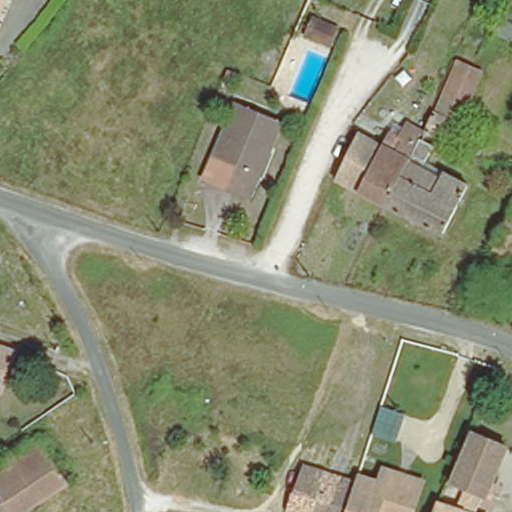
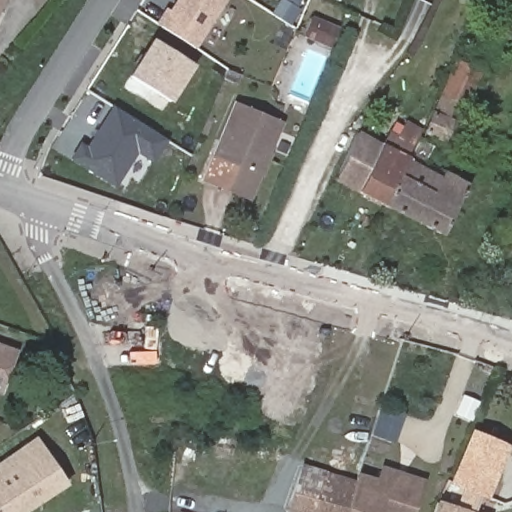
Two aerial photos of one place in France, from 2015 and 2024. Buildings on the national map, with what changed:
unchanged [(0,4),(0,0),(2,0),(0,4)]
new [(172,12),(180,0),(227,0),(197,49),(159,25),(169,10),(172,12)]
demolished [(509,0),(512,0),(512,41),(494,34),(509,0)]
unchanged [(309,39),(317,18),(342,27),(334,48),(309,39)]
new [(160,40),(200,65),(177,101),(137,77),(160,40)]
unchanged [(455,126),(446,146),(424,137),(456,67),(470,73),(482,78),(468,108),(457,103),(448,123),(455,126)]
unchanged [(226,184),(207,176),(216,154),(240,99),(278,115),(287,119),(274,149),(264,173),(254,196),(226,184)]
new [(83,145),(89,149),(117,107),(168,140),(155,161),(139,150),(117,185),(74,158),(83,145)]
unchanged [(386,209),(360,196),(380,156),(383,151),(389,137),(394,128),(403,133),(405,127),(421,135),(417,143),(386,209)]
unchanged [(477,152),(467,147),(472,136),(483,140),(477,152)]
unchanged [(383,151),(380,156),(360,196),(336,184),(359,138),(383,151)]
unchanged [(417,143),(433,150),(424,167),(468,189),(443,238),(386,209),(417,143)]
unchanged [(512,217),(510,216),(512,213),(512,217)]
unchanged [(512,264),(491,253),(510,216),(512,217),(512,264)]
unchanged [(3,396),(0,395),(0,345),(22,352),(3,396)]
new [(397,441),(385,438),(376,434),(385,409),(399,414),(406,416),(397,441)]
unchanged [(466,481),(452,475),(474,427),(507,442),(486,490),(482,488),(475,510),(480,512),(433,512),(437,498),(458,505),(466,481)]
unchanged [(17,463),(44,445),(72,488),(47,505),(17,463)]
unchanged [(17,463),(47,505),(37,512),(15,512),(0,490),(0,474),(17,463)]
unchanged [(304,463),(356,479),(358,473),(437,498),(433,512),(315,512),(288,504),(304,463)]
unchanged [(15,512),(0,512),(0,490),(15,512)]

